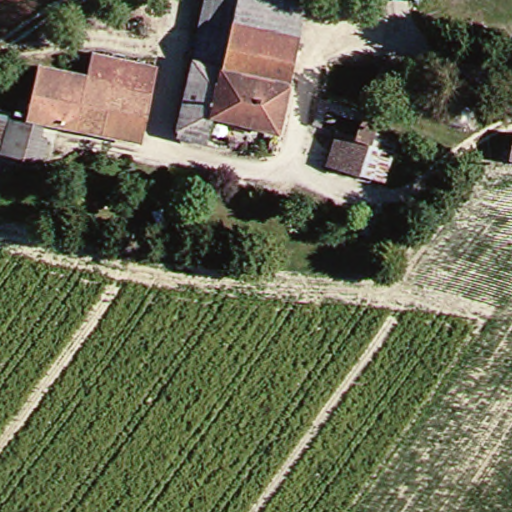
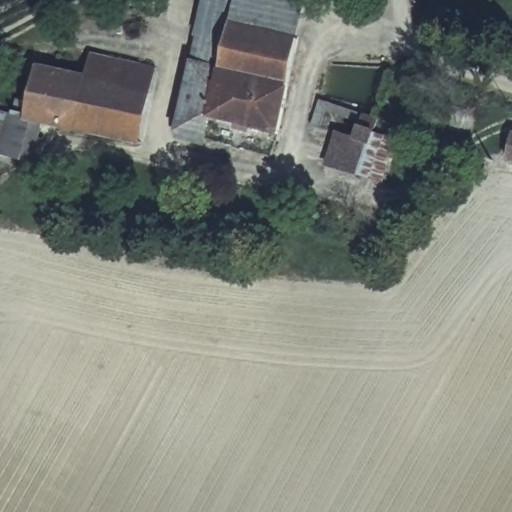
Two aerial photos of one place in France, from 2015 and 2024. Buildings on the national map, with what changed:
unchanged [(309,31),(241,16),(246,0),(306,0),(315,3),(309,31)]
unchanged [(284,129),(219,114),(214,136),(181,128),(200,55),(207,26),(237,34),(241,16),(309,31),(284,129)]
unchanged [(100,54),(164,70),(146,139),(83,126),(94,76),(100,54)]
unchanged [(83,126),(54,121),(49,140),(59,143),(50,167),(10,153),(23,97),(40,101),(50,66),(94,76),(83,126)]
unchanged [(377,118),(373,131),(391,136),(375,183),(325,167),(337,130),(351,134),(355,121),(325,111),(321,126),(312,124),(317,108),(320,100),(377,118)]

